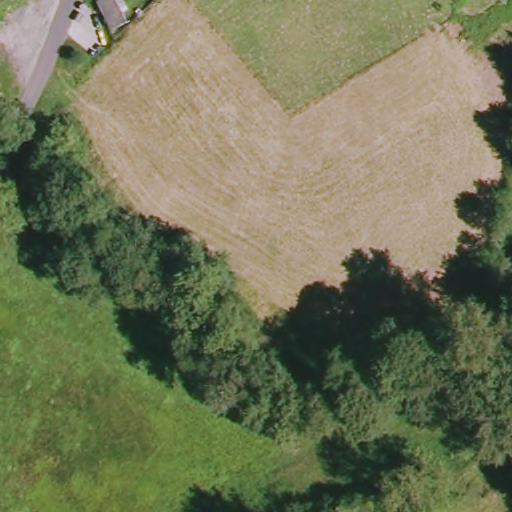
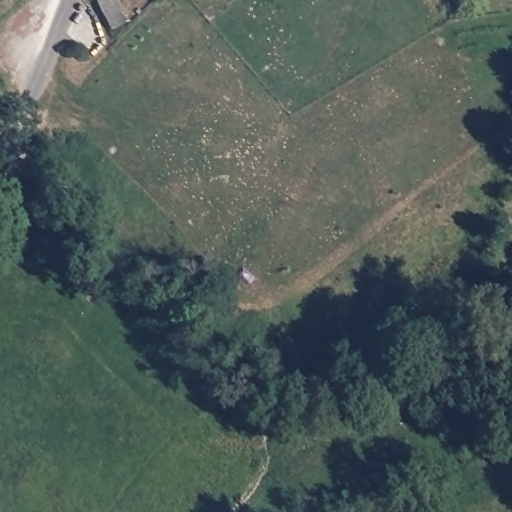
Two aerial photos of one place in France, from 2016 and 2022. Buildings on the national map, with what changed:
unchanged [(96,0),(114,0),(120,19),(105,24),(96,0)]

